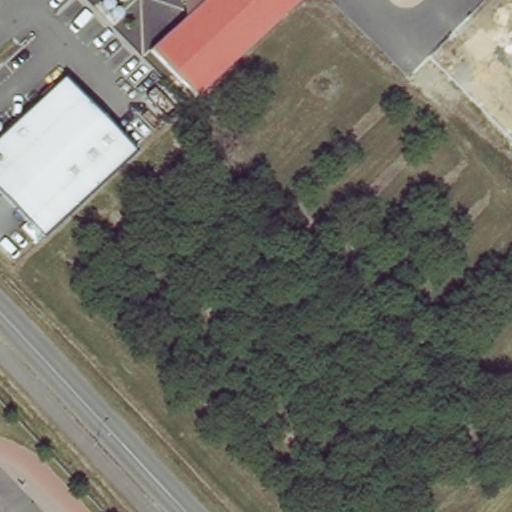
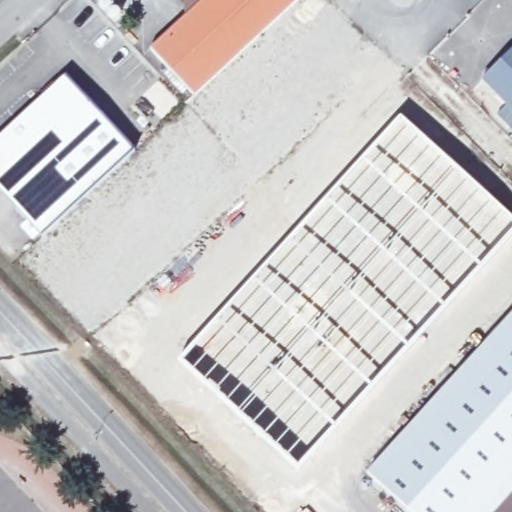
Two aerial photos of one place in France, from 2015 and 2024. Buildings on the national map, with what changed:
unchanged [(188,12),(186,0),(299,0),(196,98),(150,47),(188,12)]
new [(482,80),(512,51),(512,112),(482,80)]
unchanged [(43,236),(0,191),(0,139),(65,80),(132,153),(43,236)]
new [(246,280),(398,113),(512,216),(512,231),(449,297),(406,346),(297,464),(178,359),(246,280)]
new [(409,512),(367,473),(512,314),(512,493),(494,512),(409,512)]

